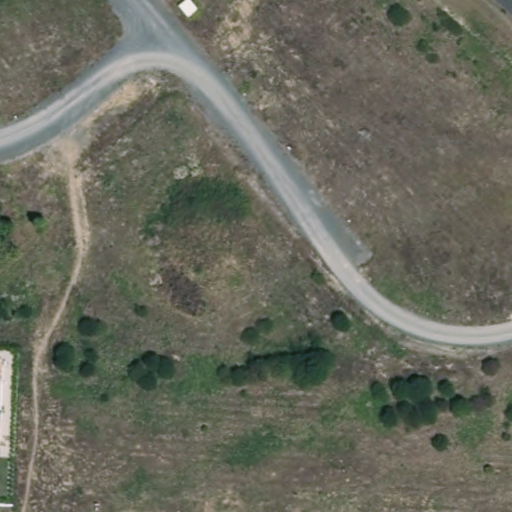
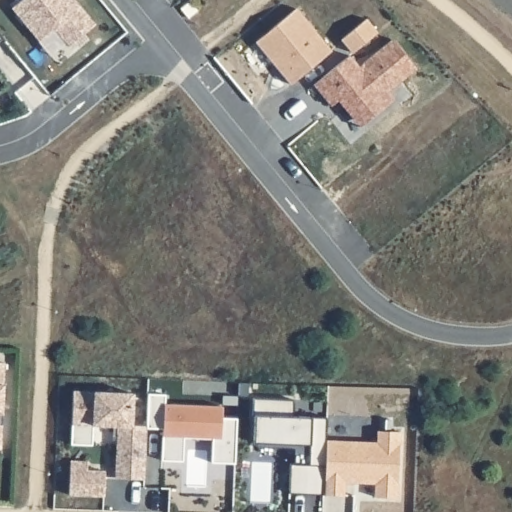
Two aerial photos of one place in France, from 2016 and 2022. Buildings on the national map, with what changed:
new [(94,26),(68,47),(54,30),(38,42),(11,9),(23,0),(73,0),(94,26)]
new [(295,11),(330,53),(289,86),(254,44),(295,11)]
new [(364,21),(376,35),(351,55),(339,42),(364,21)]
new [(349,54),(359,66),(391,37),(416,66),(387,89),(394,97),(358,126),(337,98),(329,104),(313,84),(349,54)]
new [(0,45),(0,38),(4,42),(0,45)]
new [(0,94),(0,77),(9,87),(0,94)]
unchanged [(4,383),(4,411),(3,448),(0,448),(0,362),(6,362),(4,383)]
new [(130,395),(129,427),(144,428),(144,430),(141,481),(113,479),(114,437),(110,437),(110,427),(90,426),(89,446),(68,446),(69,426),(70,392),(130,395)]
new [(180,463),(159,462),(160,430),(144,430),(144,428),(145,395),(163,396),(163,406),(220,409),(219,419),(234,420),(233,465),(209,464),(210,440),(182,438),(180,463)]
new [(324,420),(321,497),(286,495),(287,466),(292,466),(293,446),(250,444),(252,416),(324,420)]
new [(68,462),(84,463),(84,472),(103,473),(101,498),(66,497),(68,462)]

